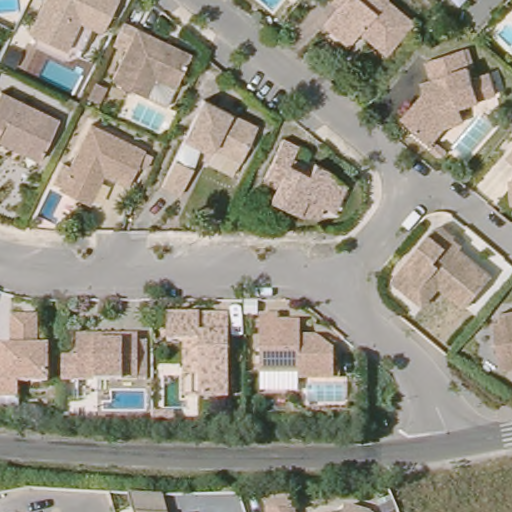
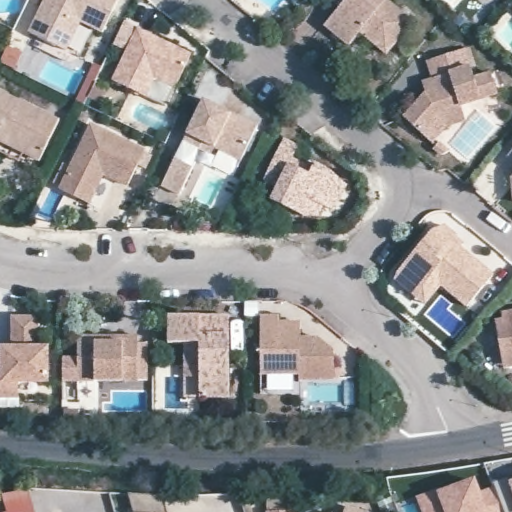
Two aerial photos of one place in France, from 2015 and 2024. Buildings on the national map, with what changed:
unchanged [(108,26),(85,15),(71,45),(35,27),(48,0),(120,0),(108,26)]
unchanged [(354,40),(329,20),(344,2),(342,0),(398,0),(406,7),(418,16),(411,25),(391,48),(375,35),(365,27),(354,40)]
unchanged [(180,83),(160,73),(151,92),(117,75),(143,23),(197,49),(180,83)]
unchanged [(430,132),(409,113),(439,78),(432,56),(470,44),(479,73),(496,68),(502,88),(466,100),(471,115),(451,121),(437,138),(430,132)]
unchanged [(45,155),(1,134),(0,135),(0,99),(6,87),(65,115),(45,155)]
unchanged [(204,143),(189,135),(209,94),(263,121),(246,155),(243,162),(204,143)]
unchanged [(133,180),(109,168),(94,199),(65,184),(96,120),(150,145),(133,180)]
unchanged [(320,215),(304,215),(272,199),(277,187),(264,181),(267,174),(284,138),(299,145),(293,156),(314,167),(316,162),(329,168),(339,176),(337,180),(348,185),(336,210),(325,205),(320,215)]
unchanged [(444,138),(454,146),(453,147),(452,148),(450,149),(448,149),(446,149),(439,144),(444,138)]
unchanged [(175,159),(193,167),(180,194),(162,186),(175,159)]
unchanged [(421,290),(400,273),(403,267),(438,224),(449,220),(461,230),(460,232),(467,238),(465,242),(498,270),(473,301),(446,279),(430,298),(421,290)]
unchanged [(0,341),(8,341),(17,341),(17,311),(42,311),(42,341),(53,341),(53,377),(23,377),(23,392),(0,392),(0,341)]
unchanged [(173,338),(173,311),(205,311),(213,311),(234,311),(234,393),(205,393),(205,373),(190,373),(190,338),(173,338)]
unchanged [(265,388),(265,369),(266,311),(283,311),(283,317),(305,317),(305,323),(305,332),(322,332),(339,346),(339,374),(304,374),(304,388),(265,388)]
unchanged [(506,354),(501,327),(500,320),(508,319),(506,312),(512,311),(512,368),(508,368),(506,354)]
unchanged [(83,376),(83,337),(83,331),(127,331),(143,331),(143,376),(83,376)]
unchanged [(173,413),(173,422),(153,422),(153,413),(173,413)]
new [(492,482),(508,476),(510,481),(512,480),(512,512),(503,512),(493,486),(492,482)]
new [(441,493),(473,480),(478,492),(493,486),(503,512),(424,512),(419,498),(440,490),(441,493)]
unchanged [(171,512),(139,512),(135,495),(168,496),(171,512)]
unchanged [(272,512),(270,502),(293,497),(297,512),(272,512)]
unchanged [(373,512),(348,512),(348,505),(373,512)]

